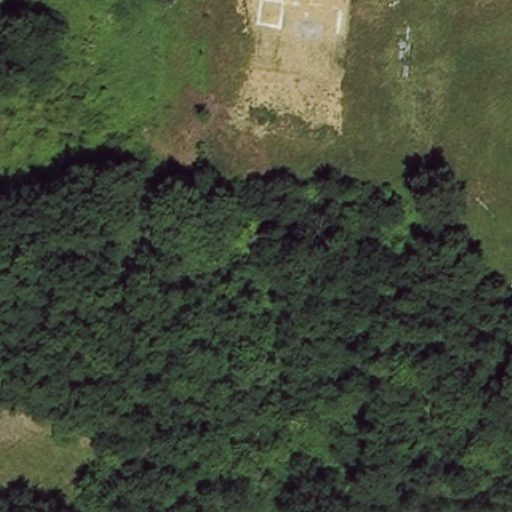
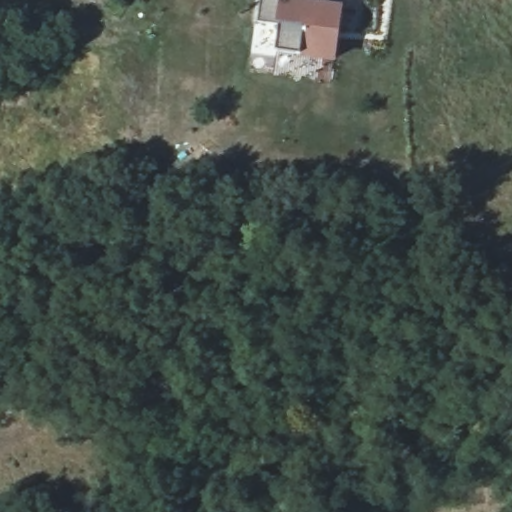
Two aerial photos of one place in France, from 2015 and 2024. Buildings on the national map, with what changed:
new [(311,0),(344,5),(336,64),(301,60),(301,55),(274,50),(278,26),(259,24),(262,0),(311,0)]

